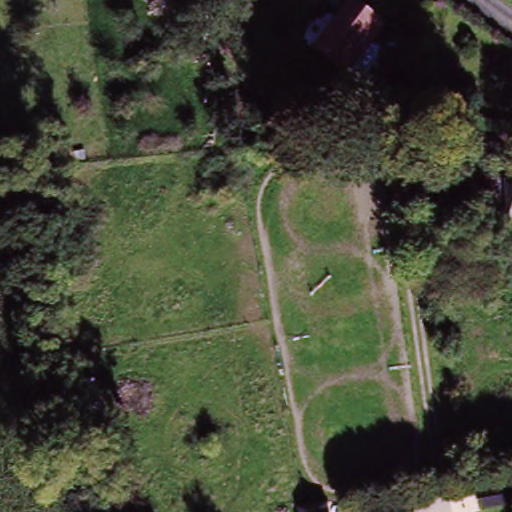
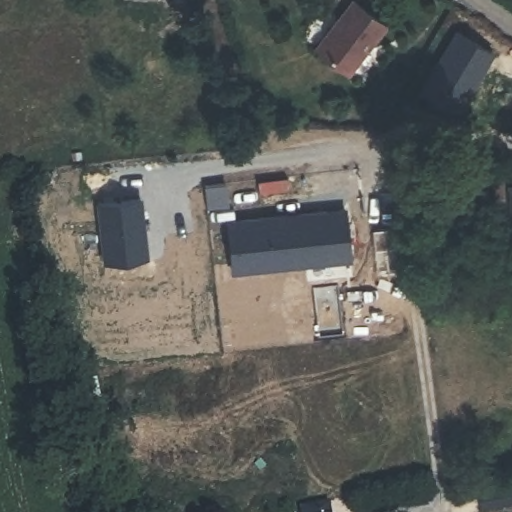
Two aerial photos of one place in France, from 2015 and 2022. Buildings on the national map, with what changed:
unchanged [(312,48),(352,0),(386,28),(346,75),(312,48)]
unchanged [(311,68),(317,90),(300,94),(294,72),(311,68)]
unchanged [(472,179),(505,179),(506,195),(512,195),(512,223),(471,224),(472,179)]
new [(143,205),(148,262),(107,265),(99,207),(143,205)]
new [(231,227),(343,215),(348,264),(237,274),(231,227)]

